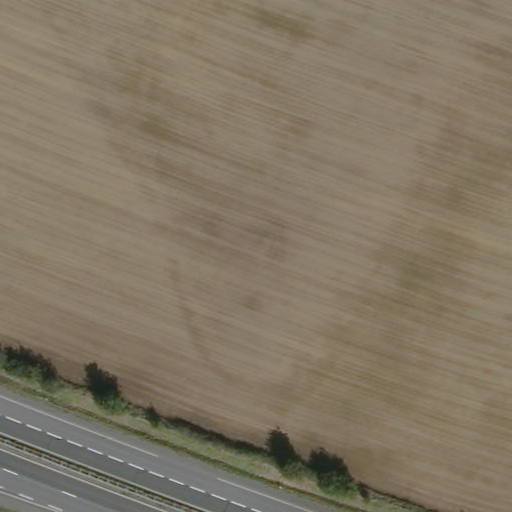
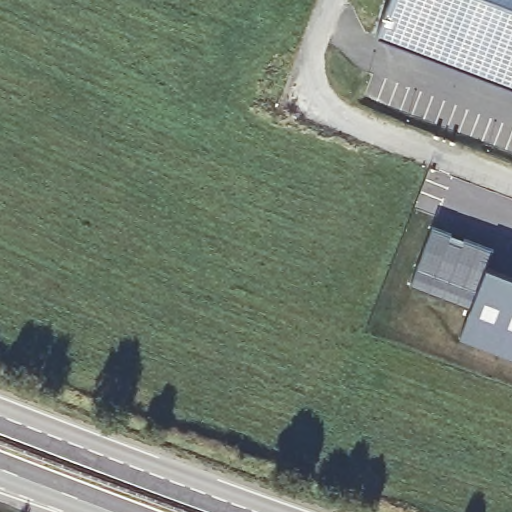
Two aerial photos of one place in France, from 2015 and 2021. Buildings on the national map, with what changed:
new [(512,85),(376,34),(390,0),(512,0),(512,85)]
new [(465,241),(495,252),(487,269),(512,279),(512,359),(461,339),(471,311),(410,288),(433,228),(452,236),(465,241)]

